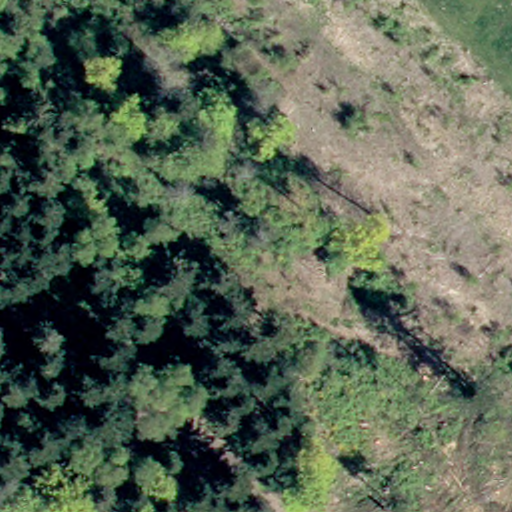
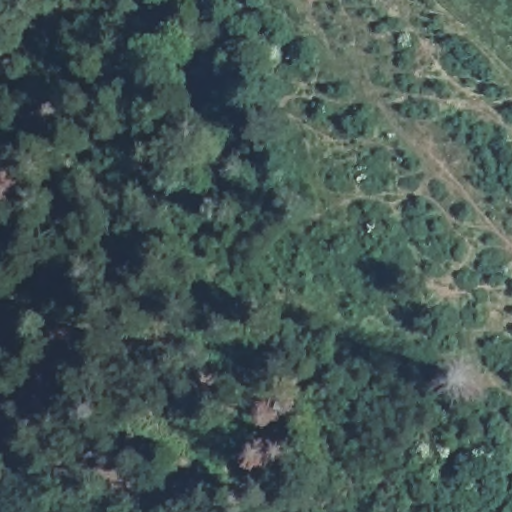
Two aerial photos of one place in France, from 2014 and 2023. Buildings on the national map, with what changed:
[]

